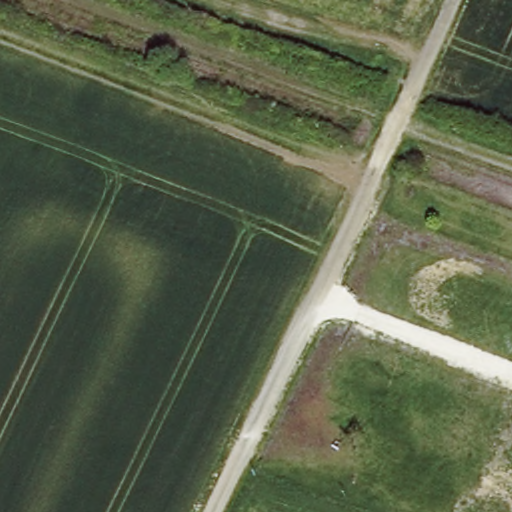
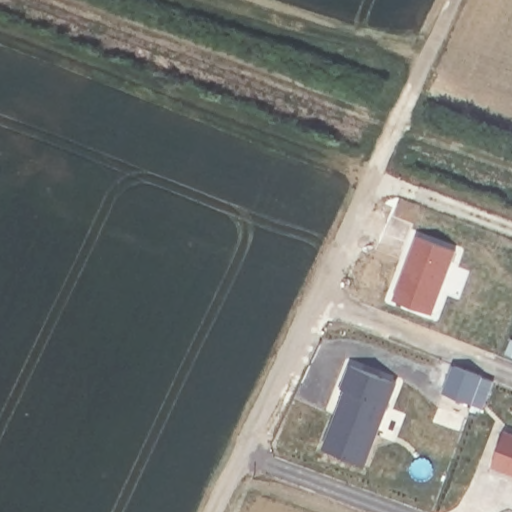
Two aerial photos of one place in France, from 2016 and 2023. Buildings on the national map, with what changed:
new [(413,236),(452,250),(428,314),(390,299),(413,236)]
new [(332,415),(336,417),(339,409),(337,404),(342,390),(338,388),(347,365),(393,382),(362,465),(320,449),(332,415)]
new [(477,407),(444,395),(455,366),(488,378),(477,407)]
new [(507,432),(512,434),(512,475),(493,468),(507,432)]
demolished [(512,497),(500,492),(512,459),(512,497)]
demolished [(355,467),(377,475),(372,491),(349,483),(355,467)]

